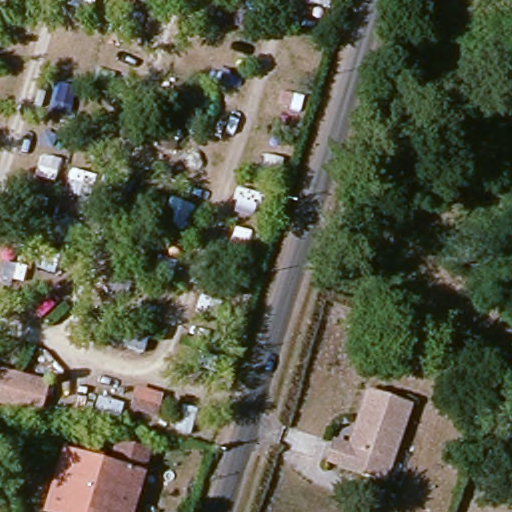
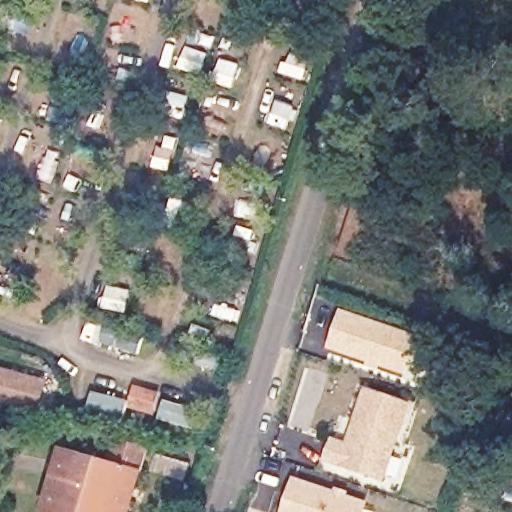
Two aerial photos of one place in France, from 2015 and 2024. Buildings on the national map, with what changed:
new [(340,308),(415,334),(402,375),(323,348),(340,308)]
unchanged [(39,411),(0,401),(0,371),(46,383),(39,411)]
unchanged [(384,479),(329,460),(335,441),(350,445),(369,390),(410,404),(384,479)]
unchanged [(153,410),(134,405),(138,391),(157,396),(153,410)]
unchanged [(467,430),(454,425),(459,411),(472,415),(467,430)]
unchanged [(63,456),(110,470),(116,448),(146,456),(130,512),(48,512),(63,456)]
new [(292,475),(342,490),(367,499),(363,512),(279,512),(292,475)]

